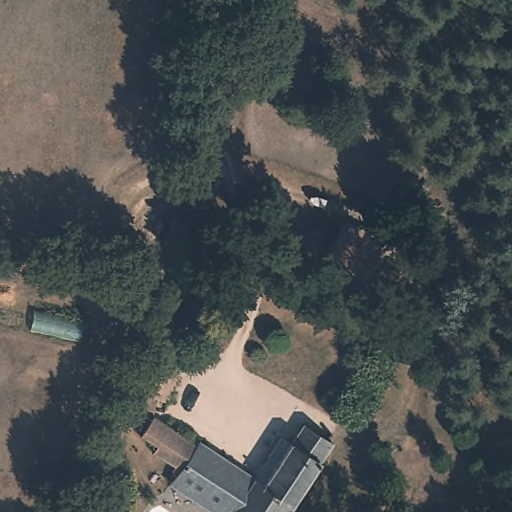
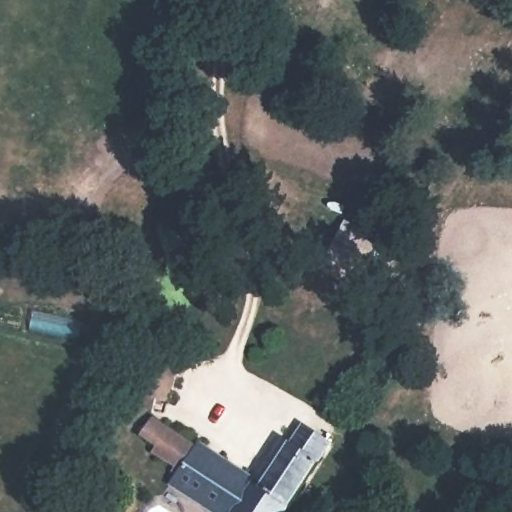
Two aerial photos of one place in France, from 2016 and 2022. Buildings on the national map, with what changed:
unchanged [(146,410),(160,353),(184,359),(170,416),(146,410)]
unchanged [(332,443),(286,512),(222,512),(177,479),(185,466),(157,446),(160,442),(145,430),(156,414),(194,440),(201,432),(258,476),(285,438),(292,443),(304,425),(332,443)]

